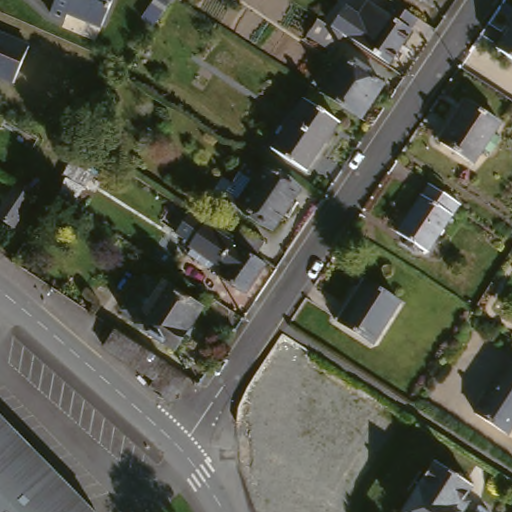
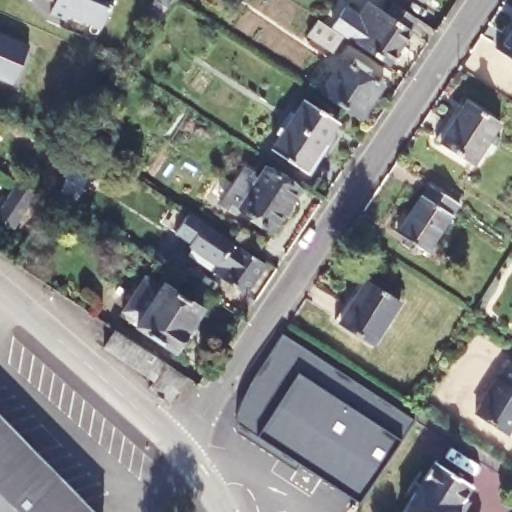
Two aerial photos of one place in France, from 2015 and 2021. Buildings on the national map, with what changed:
unchanged [(104,22),(71,9),(68,15),(53,9),(56,0),(114,0),(104,22)]
unchanged [(162,7),(143,34),(132,27),(150,0),(151,0),(162,7)]
unchanged [(422,6),(412,0),(426,0),(422,6)]
unchanged [(414,29),(386,71),(344,44),(366,10),(386,23),(392,14),(414,29)]
unchanged [(493,53),(512,25),(512,66),(493,53)]
unchanged [(329,58),(304,41),(314,26),(339,44),(329,58)]
unchanged [(9,86),(0,83),(0,38),(24,48),(9,86)]
unchanged [(344,73),(347,69),(363,80),(361,85),(374,94),(353,125),(313,98),(333,66),(344,73)]
unchanged [(330,136),(305,177),(271,155),(302,105),(336,126),(330,136)]
unchanged [(501,128),(474,168),(439,145),(458,116),(465,106),(501,128)]
unchanged [(232,220),(218,210),(242,175),(256,184),(262,175),(296,198),(269,237),(236,214),(232,220)]
unchanged [(17,178),(36,190),(28,204),(7,239),(0,235),(0,207),(6,196),(8,193),(17,178)]
unchanged [(458,209),(428,255),(398,237),(428,190),(458,209)]
unchanged [(251,236),(241,249),(219,233),(228,221),(251,236)]
unchanged [(241,302),(210,279),(213,274),(211,272),(183,253),(198,231),(226,249),(261,274),(241,302)]
unchanged [(168,294),(206,318),(178,360),(141,335),(143,331),(133,324),(127,321),(150,286),(156,290),(166,297),(168,294)]
unchanged [(359,288),(391,310),(363,352),(331,331),(359,288)]
demolished [(239,443),(240,423),(243,408),(249,387),(261,362),(277,337),(308,356),(301,367),(403,434),(354,512),(253,512),(241,468),(239,443)]
unchanged [(164,410),(143,396),(148,390),(98,358),(109,339),(111,340),(181,385),(164,410)]
unchanged [(500,367),(512,375),(512,419),(498,441),(466,420),(500,367)]
unchanged [(0,512),(0,431),(81,512),(0,512)]
unchanged [(469,490),(455,512),(399,512),(429,465),(469,490)]

